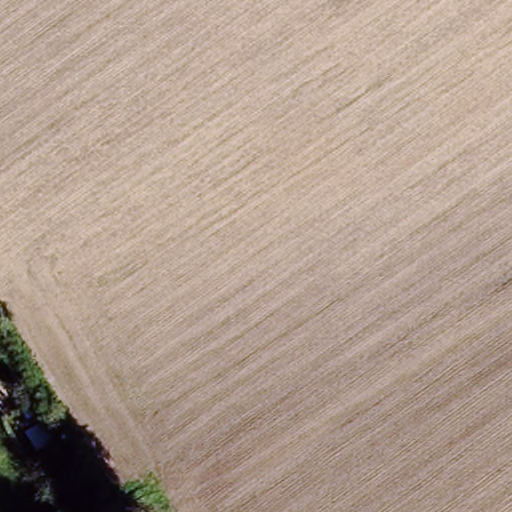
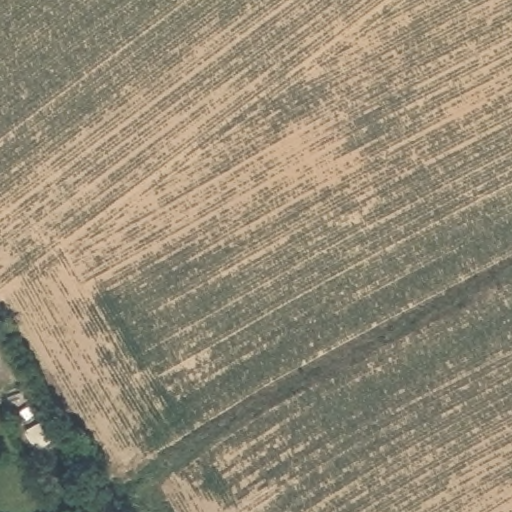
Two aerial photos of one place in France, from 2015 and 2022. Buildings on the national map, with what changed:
[]

